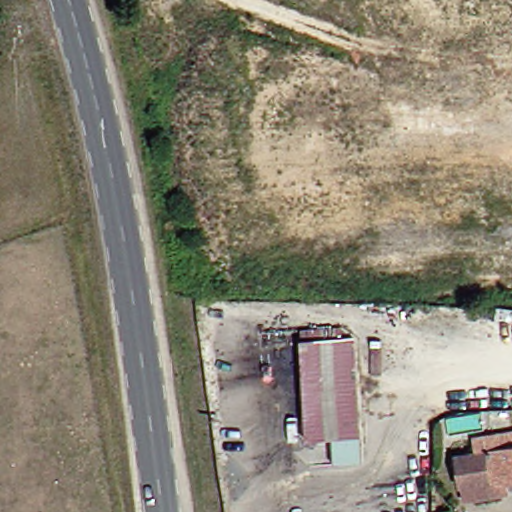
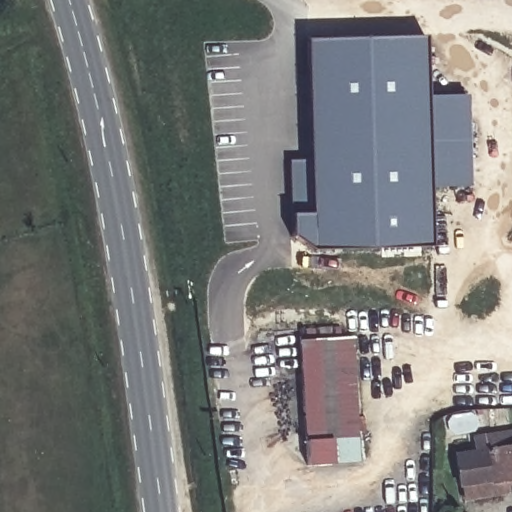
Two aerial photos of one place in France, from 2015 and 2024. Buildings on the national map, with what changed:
new [(427,97),(442,96),(442,100),(453,100),(453,96),(470,96),(472,187),(430,188),(431,247),(314,250),(313,244),(302,244),(302,238),(295,238),(293,162),(312,161),(310,42),(425,39),(427,97)]
unchanged [(352,435),(298,437),(297,340),(350,336),(352,435)]
unchanged [(512,450),(512,486),(457,492),(452,458),(512,450)]

